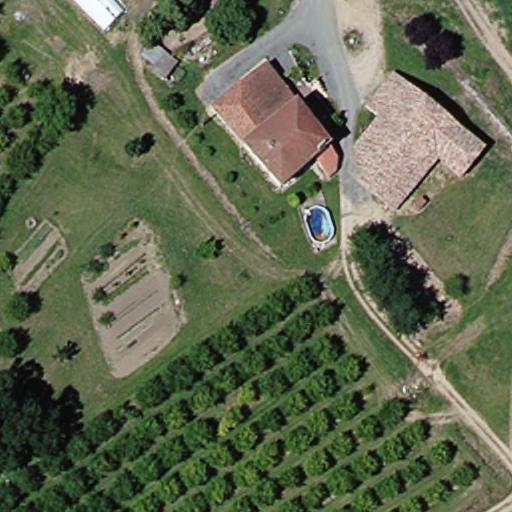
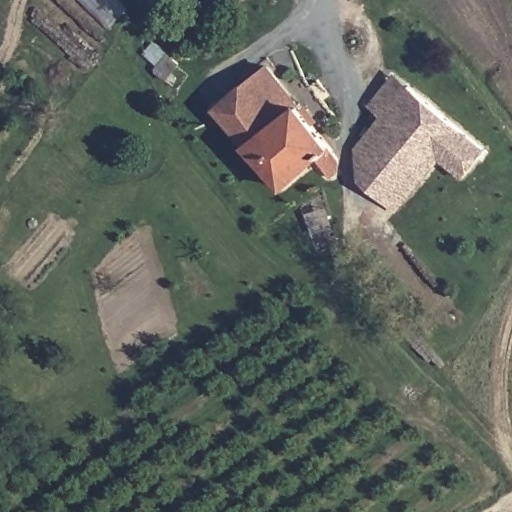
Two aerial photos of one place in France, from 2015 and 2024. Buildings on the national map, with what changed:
unchanged [(346,157),(343,179),(326,163),(287,192),(225,106),(278,66),(330,134),(346,157)]
unchanged [(387,118),(375,108),(402,74),(413,84),(495,147),(470,179),(447,162),(418,199),(363,153),(363,148),(387,118)]
unchanged [(362,180),(363,153),(418,199),(407,214),(362,180)]

